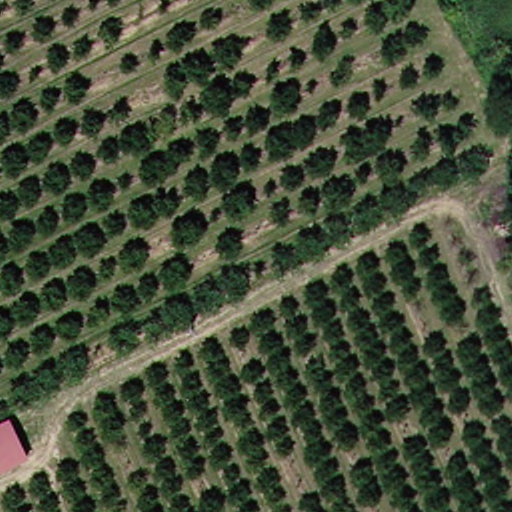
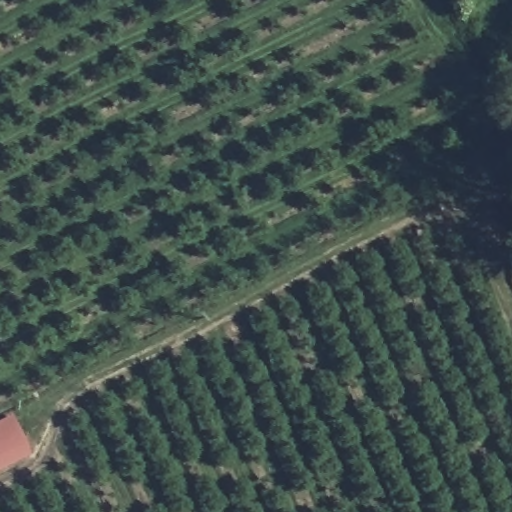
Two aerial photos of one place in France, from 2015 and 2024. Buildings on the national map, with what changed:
unchanged [(0,473),(0,426),(15,419),(36,456),(0,473)]

